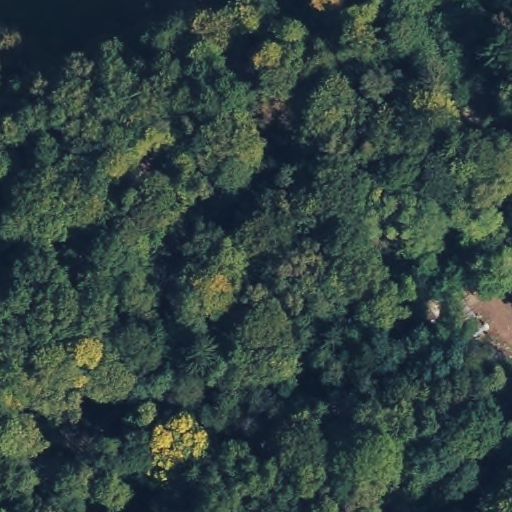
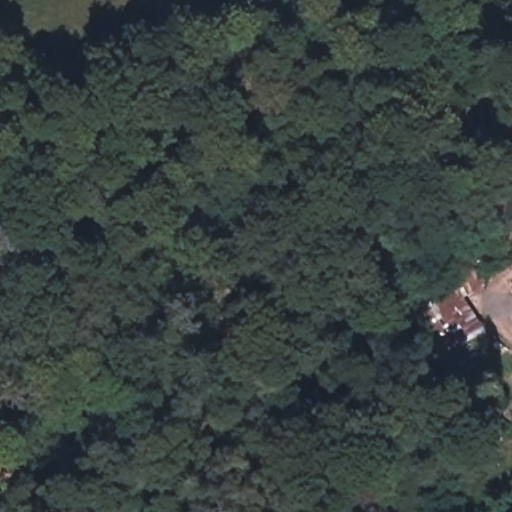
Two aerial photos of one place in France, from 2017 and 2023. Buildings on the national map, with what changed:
unchanged [(419,310),(445,294),(448,298),(471,335),(445,351),(441,345),(419,310)]

